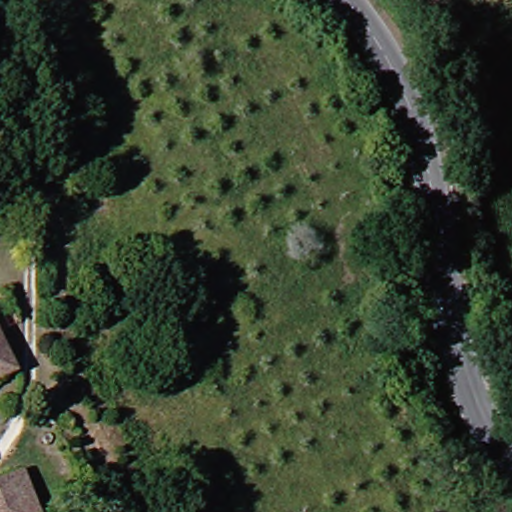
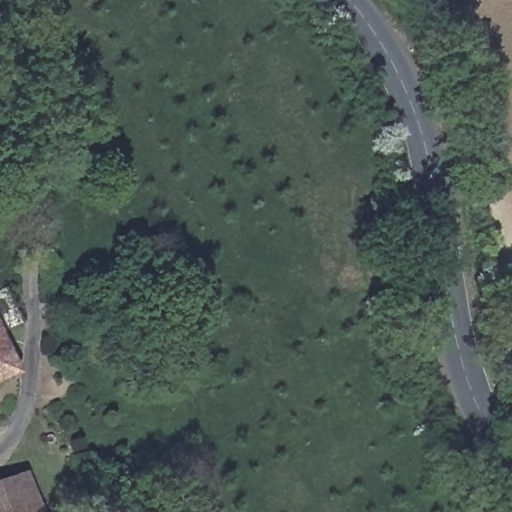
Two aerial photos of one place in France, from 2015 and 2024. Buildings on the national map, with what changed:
unchanged [(18,374),(0,382),(0,335),(18,374)]
unchanged [(27,467),(43,512),(0,512),(0,478),(27,467)]

